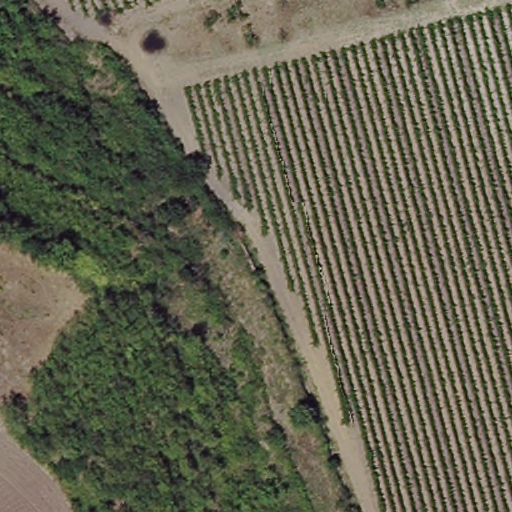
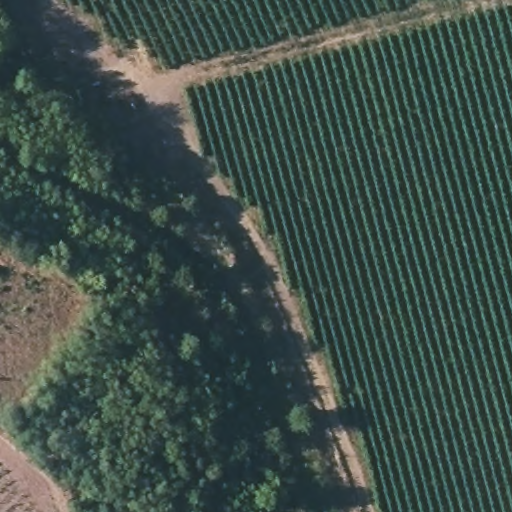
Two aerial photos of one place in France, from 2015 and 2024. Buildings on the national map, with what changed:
unchanged [(85,273),(72,261),(77,253),(92,262),(85,273)]

